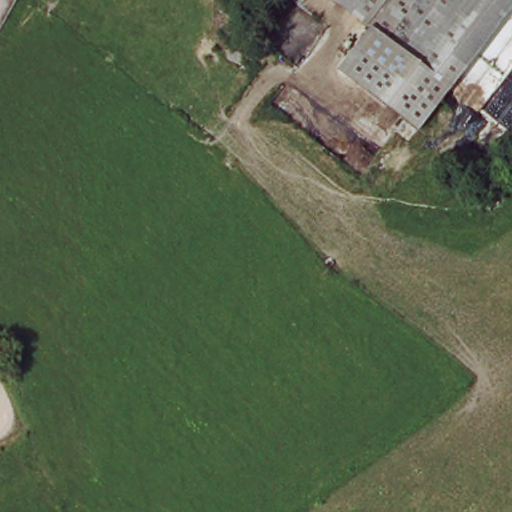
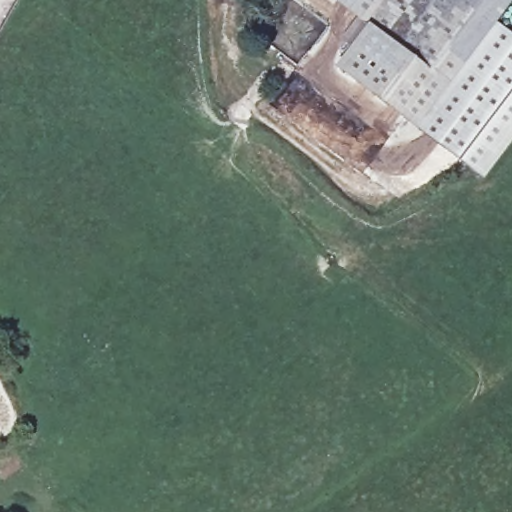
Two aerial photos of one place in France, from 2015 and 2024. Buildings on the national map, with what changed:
unchanged [(369,21),(346,5),(341,0),(385,0),(369,21)]
unchanged [(512,3),(450,85),(369,21),(385,0),(512,0),(512,3)]
unchanged [(418,126),(338,61),(369,21),(450,85),(418,126)]
new [(512,144),(485,180),(418,126),(450,85),(496,24),(512,36),(512,144)]

